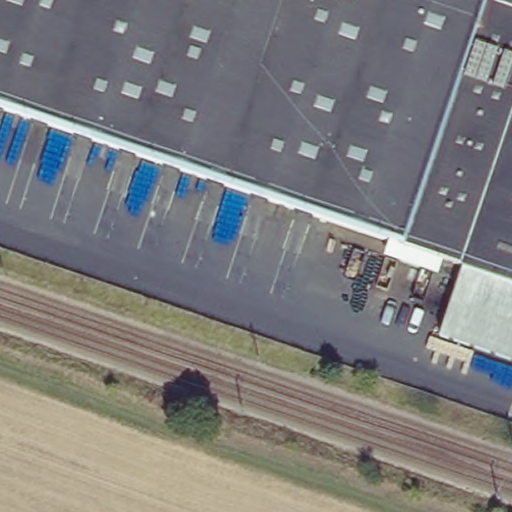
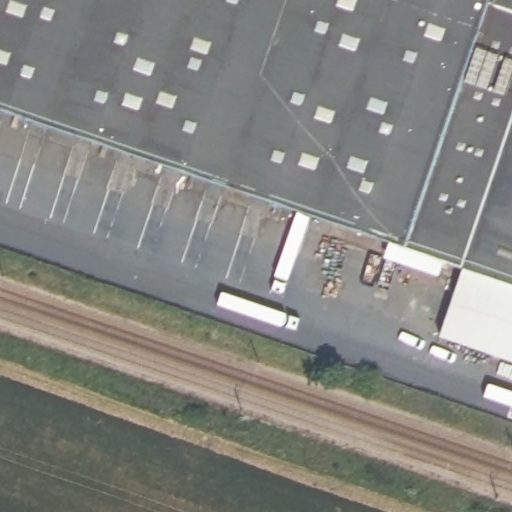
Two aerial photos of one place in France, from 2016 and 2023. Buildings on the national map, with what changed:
unchanged [(467,264),(0,105),(0,0),(512,0),(512,357),(446,334),(467,264)]

